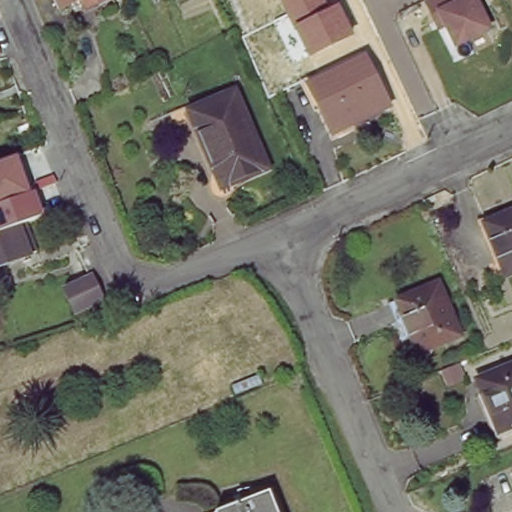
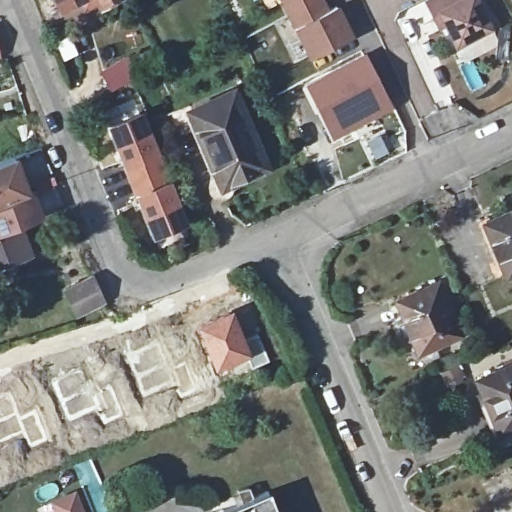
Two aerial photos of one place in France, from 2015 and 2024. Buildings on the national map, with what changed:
unchanged [(58,3),(56,0),(64,0),(58,3)]
unchanged [(86,1),(86,0),(89,0),(86,1)]
unchanged [(329,7),(339,2),(355,34),(308,58),(280,0),(326,0),(329,7)]
unchanged [(436,19),(427,0),(476,0),(489,27),(456,43),(446,22),(439,26),(436,19)]
unchanged [(336,131),(322,101),(316,105),(305,84),(361,55),(387,106),(336,131)]
unchanged [(234,92),(268,166),(221,187),(188,112),(234,92)]
new [(123,168),(105,124),(141,110),(170,180),(188,224),(152,240),(133,195),(123,168)]
new [(29,192),(34,190),(43,214),(0,230),(0,160),(16,154),(29,192)]
unchanged [(507,270),(486,219),(512,208),(512,268),(507,270)]
unchanged [(30,249),(0,260),(0,230),(21,223),(30,249)]
unchanged [(94,271),(106,296),(78,309),(66,285),(94,271)]
unchanged [(459,334),(420,352),(404,316),(392,320),(387,306),(398,301),(437,283),(459,334)]
new [(232,309),(243,336),(256,331),(269,360),(251,367),(246,356),(213,369),(193,325),(232,309)]
demolished [(93,376),(74,385),(67,367),(86,359),(93,376)]
unchanged [(501,431),(479,379),(512,364),(512,426),(501,431)]
unchanged [(238,484),(253,484),(256,491),(271,486),(283,512),(211,512),(211,511),(244,496),(238,484)]
new [(76,490),(85,512),(56,512),(51,500),(76,490)]

